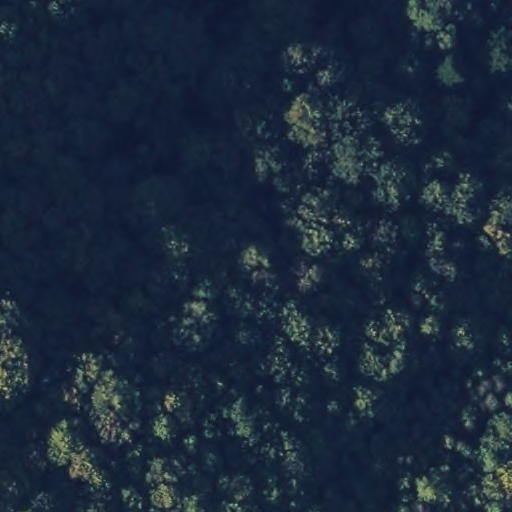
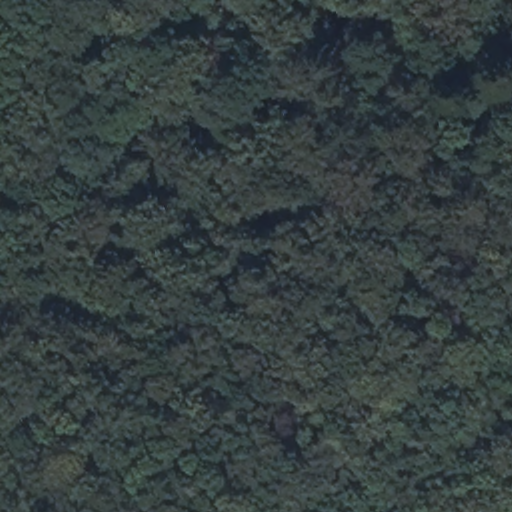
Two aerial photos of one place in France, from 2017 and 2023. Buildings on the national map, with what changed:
[]

